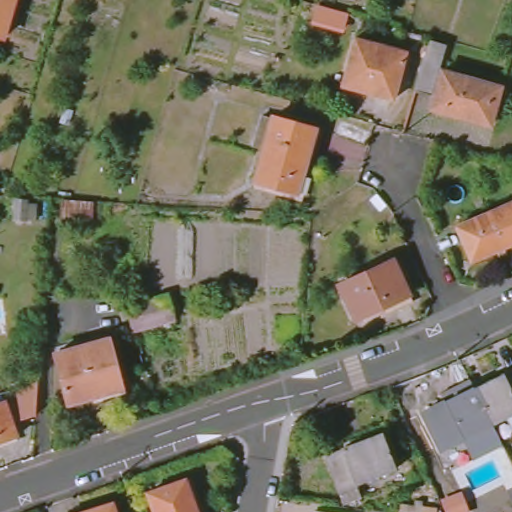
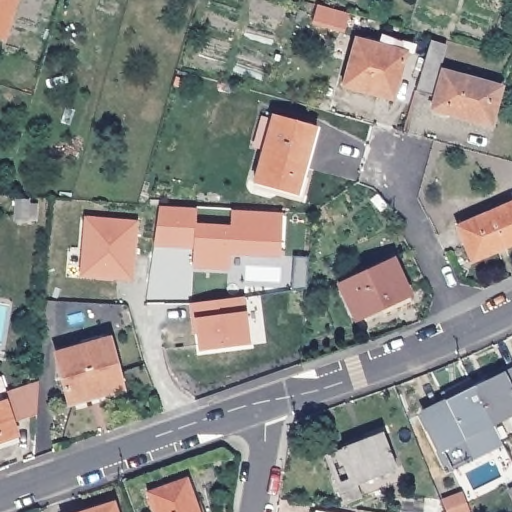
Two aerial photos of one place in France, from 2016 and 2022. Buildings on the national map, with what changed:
unchanged [(0,37),(0,0),(14,0),(3,38),(0,37)]
new [(316,4),(323,6),(348,13),(342,33),(310,24),(316,4)]
unchanged [(345,86),(357,41),(404,54),(392,98),(345,86)]
unchanged [(420,91),(435,41),(450,45),(435,95),(420,91)]
unchanged [(438,109),(448,71),(505,88),(495,125),(438,109)]
unchanged [(257,146),(265,115),(277,118),(320,129),(302,193),(260,182),(268,150),(257,146)]
unchanged [(452,221),(512,194),(512,235),(468,255),(452,221)]
new [(280,257),(230,255),(230,268),(192,267),(193,248),(155,246),(158,207),(197,209),(197,223),(232,225),(232,210),(282,213),(280,257)]
new [(80,277),(84,217),(137,221),(132,281),(80,277)]
unchanged [(339,283),(392,258),(408,292),(354,317),(339,283)]
demolished [(128,307),(142,303),(167,295),(175,318),(141,329),(135,331),(128,307)]
new [(245,313),(249,345),(198,351),(196,332),(193,333),(190,305),(243,297),(245,313)]
unchanged [(55,353),(110,338),(122,379),(88,390),(90,398),(69,403),(55,353)]
demolished [(307,355),(295,359),(292,349),(302,344),(307,355)]
unchanged [(475,390),(473,388),(512,369),(512,414),(492,424),(475,390)]
unchanged [(475,390),(492,424),(500,440),(470,454),(463,439),(441,451),(422,414),(473,388),(475,390)]
unchanged [(33,418),(7,427),(12,439),(0,443),(0,408),(0,401),(35,389),(33,418)]
unchanged [(324,456),(359,442),(361,446),(383,438),(396,470),(338,491),(324,456)]
unchanged [(148,494),(185,481),(196,512),(154,512),(148,494)]
unchanged [(460,493),(467,512),(447,512),(442,500),(460,493)]
unchanged [(113,499),(117,512),(75,512),(113,499)]

